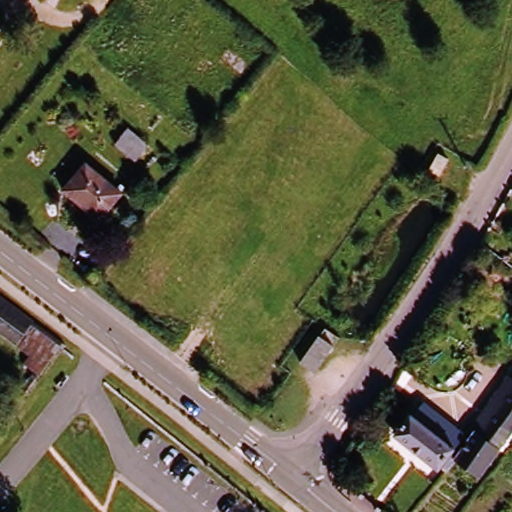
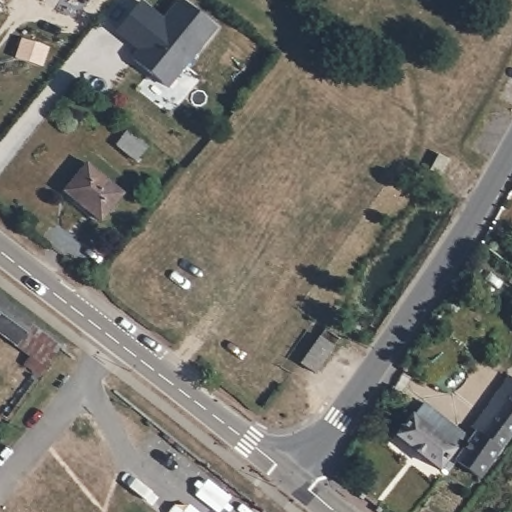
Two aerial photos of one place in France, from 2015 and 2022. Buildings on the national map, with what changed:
new [(163,21),(181,0),(183,0),(216,27),(168,86),(133,58),(142,48),(136,43),(134,45),(117,30),(140,3),(163,21)]
unchanged [(145,138),(133,154),(111,137),(124,122),(145,138)]
unchanged [(464,166),(457,176),(446,169),(453,159),(464,166)]
unchanged [(123,196),(101,223),(66,193),(88,167),(123,196)]
unchanged [(0,293),(33,317),(15,340),(0,329),(0,293)]
unchanged [(42,372),(28,361),(33,353),(15,340),(33,317),(65,341),(42,372)]
unchanged [(331,354),(312,380),(298,370),(316,344),(331,354)]
unchanged [(454,463),(447,473),(440,468),(437,472),(393,438),(409,417),(411,419),(421,407),(467,444),(474,434),(477,437),(512,388),(512,430),(477,479),(454,463)]

